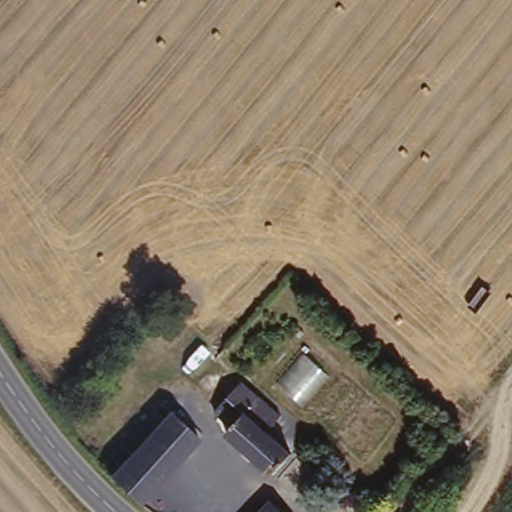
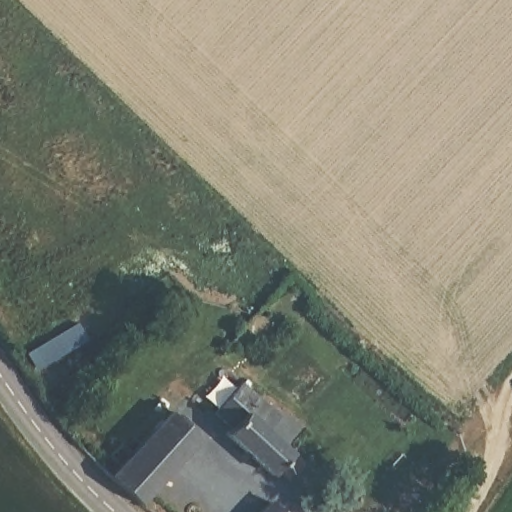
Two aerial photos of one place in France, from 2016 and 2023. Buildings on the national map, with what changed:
new [(79,322),(89,340),(36,371),(26,353),(79,322)]
unchanged [(294,449),(267,476),(227,433),(230,428),(211,410),(224,397),(241,380),(257,398),(245,408),(274,436),(283,429),(299,444),(294,449)]
unchanged [(162,411),(178,426),(184,421),(204,442),(143,508),(126,493),(112,481),(107,474),(162,411)]
unchanged [(269,496),(279,502),(287,496),(303,512),(255,512),(269,496)]

